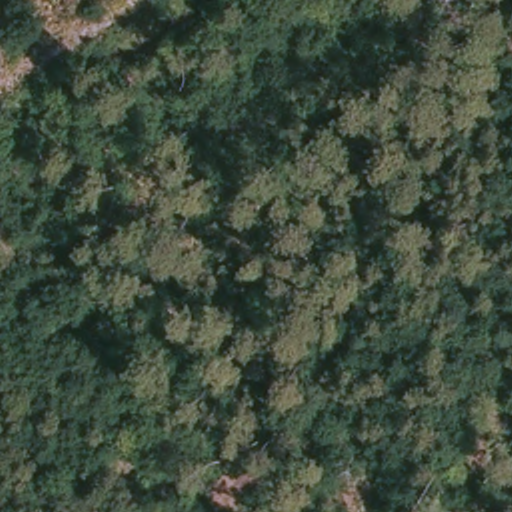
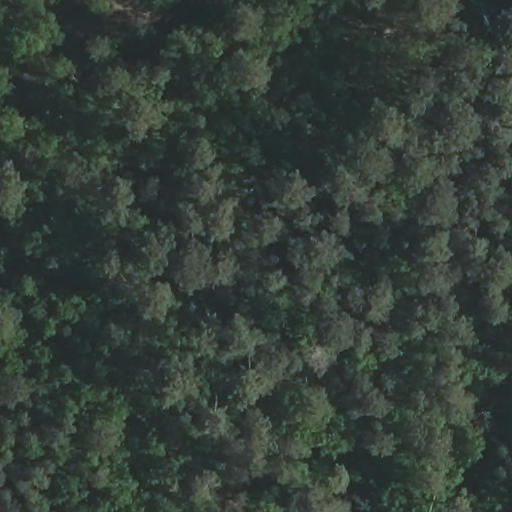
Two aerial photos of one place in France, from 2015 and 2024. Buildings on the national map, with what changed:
unchanged [(91,389),(94,344),(156,352),(151,396),(91,389)]
unchanged [(123,463),(162,487),(150,512),(100,512),(123,463)]

